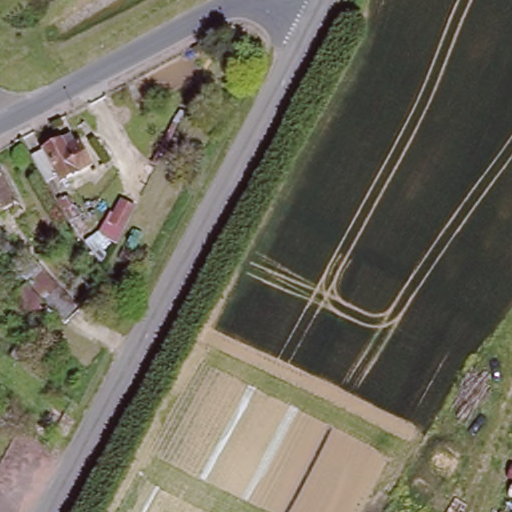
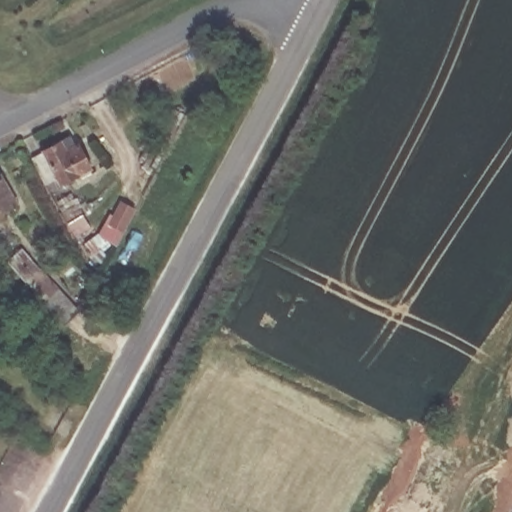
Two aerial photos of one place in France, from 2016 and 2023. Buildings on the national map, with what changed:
unchanged [(72,126),(76,134),(78,134),(91,157),(46,181),(29,149),(65,130),(72,126)]
unchanged [(2,175),(18,204),(0,213),(0,176),(2,175)]
unchanged [(27,265),(42,251),(75,286),(84,295),(69,308),(65,305),(27,265)]

